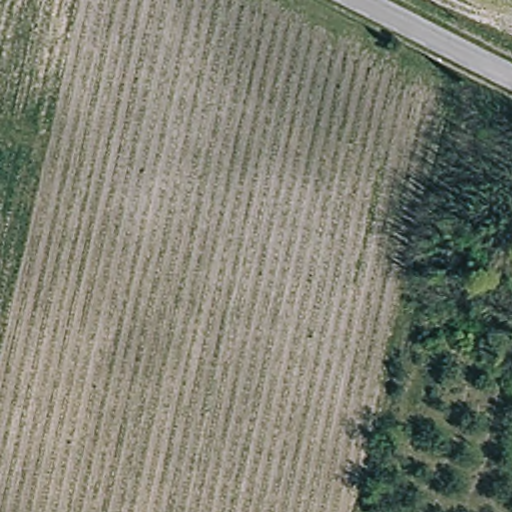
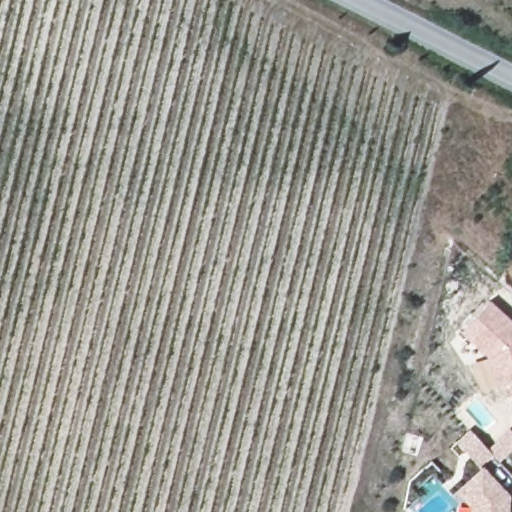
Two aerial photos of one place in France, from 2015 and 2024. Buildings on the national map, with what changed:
new [(459,333),(489,300),(512,321),(512,403),(507,384),(496,387),(488,359),(459,333)]
new [(469,507),(455,492),(482,467),(509,496),(508,512),(469,512),(469,507)]

